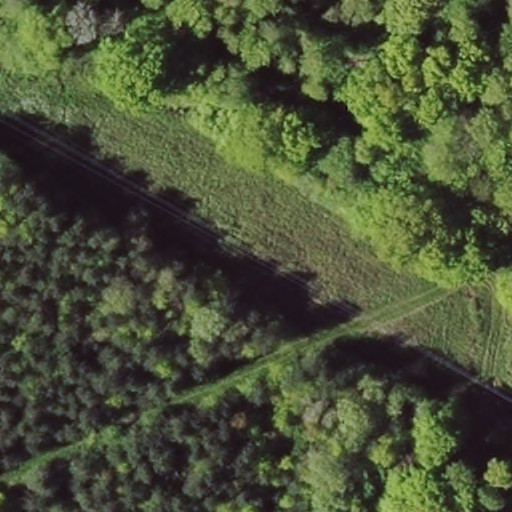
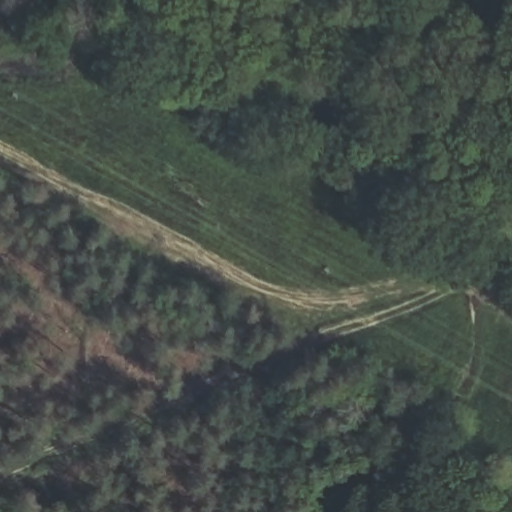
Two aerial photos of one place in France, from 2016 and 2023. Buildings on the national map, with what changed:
[]

